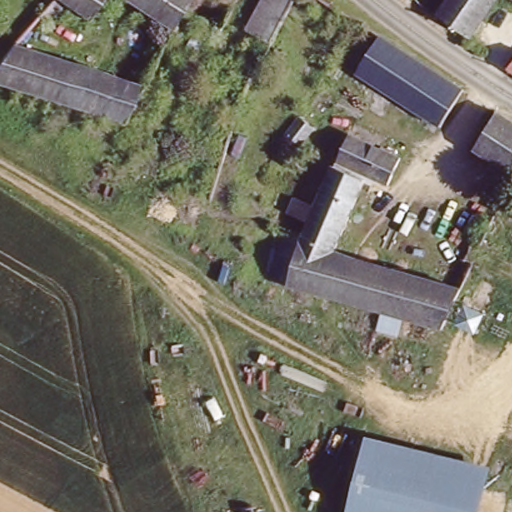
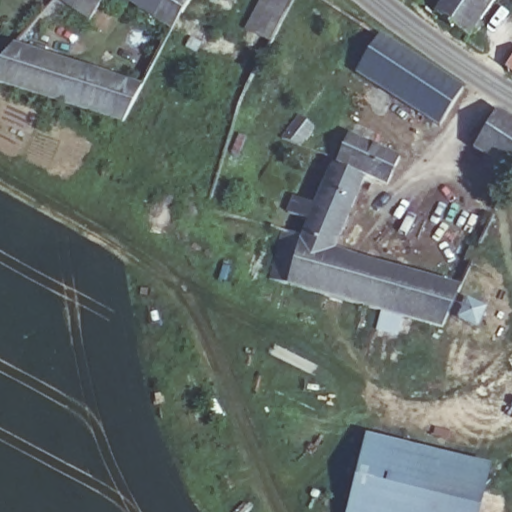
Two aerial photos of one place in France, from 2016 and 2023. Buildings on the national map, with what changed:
unchanged [(85,26),(59,8),(43,31),(32,24),(53,0),(104,0),(85,26)]
unchanged [(145,0),(166,0),(160,9),(145,0)]
unchanged [(189,11),(181,22),(160,9),(166,0),(196,0),(189,11)]
unchanged [(248,34),(260,4),(261,0),(289,0),(284,13),(272,42),(248,34)]
unchanged [(448,0),(495,0),(483,19),(471,37),(439,15),(448,0)]
unchanged [(439,121),(358,65),(378,37),(444,78),(462,90),(439,121)]
unchanged [(0,84),(0,64),(13,52),(69,67),(57,102),(0,84)]
unchanged [(69,67),(142,87),(123,122),(57,102),(69,67)]
unchanged [(509,71),(512,67),(512,73),(509,71)]
unchanged [(499,109),(512,119),(512,163),(479,143),(499,109)]
unchanged [(287,138),(304,114),(318,120),(301,144),(287,138)]
unchanged [(339,156),(350,130),(401,152),(389,179),(339,156)]
unchanged [(503,197),(495,193),(512,164),(512,181),(509,186),(503,197)]
unchanged [(311,220),(292,213),(298,198),(316,205),(331,167),(364,182),(337,251),(303,240),(311,220)]
unchanged [(303,240),(337,251),(342,253),(329,296),(287,282),(302,240),(303,240)]
unchanged [(391,315),(329,296),(342,253),(447,289),(427,327),(391,315)]
unchanged [(460,461),(448,512),(347,512),(363,439),(460,461)]
unchanged [(486,467),(476,512),(448,512),(460,461),(486,467)]

